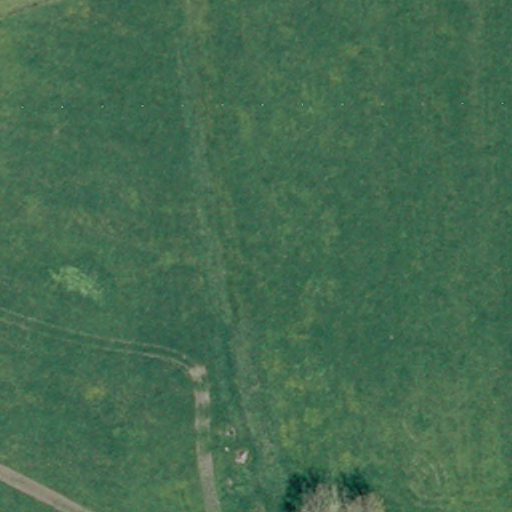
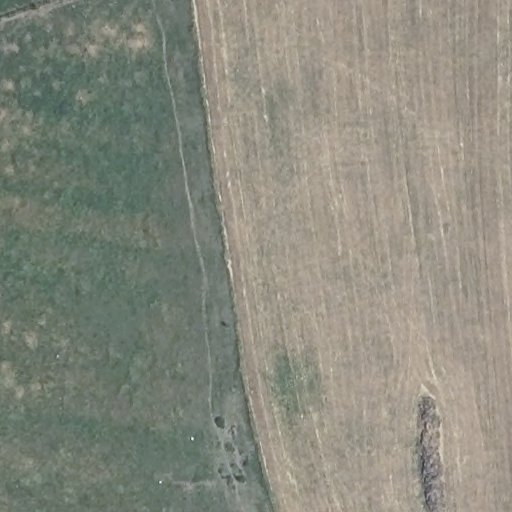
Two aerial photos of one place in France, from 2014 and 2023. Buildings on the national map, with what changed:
[]

